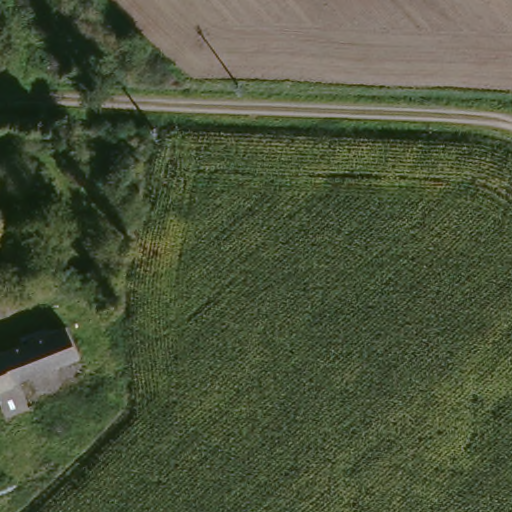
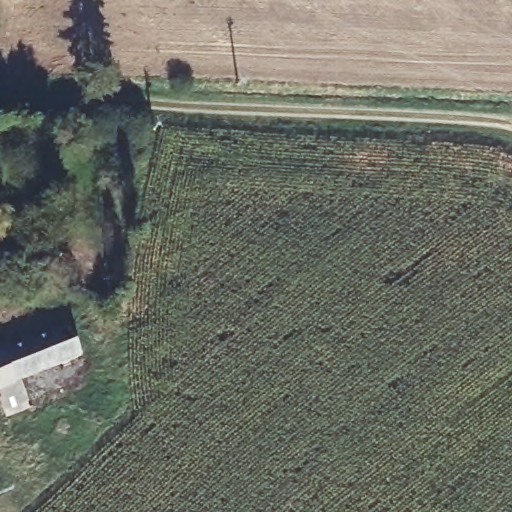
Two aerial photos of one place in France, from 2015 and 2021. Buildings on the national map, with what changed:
unchanged [(80,355),(0,392),(0,350),(64,322),(80,355)]

